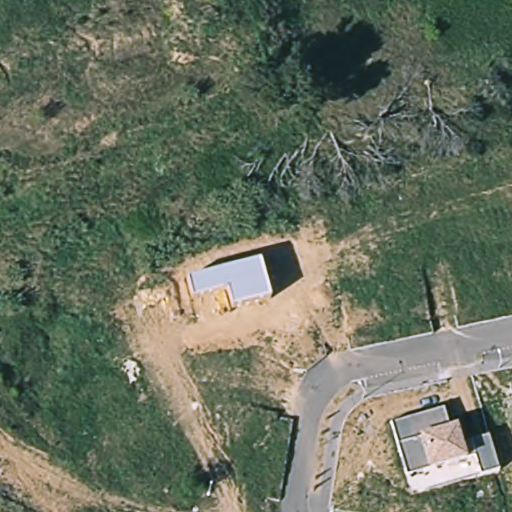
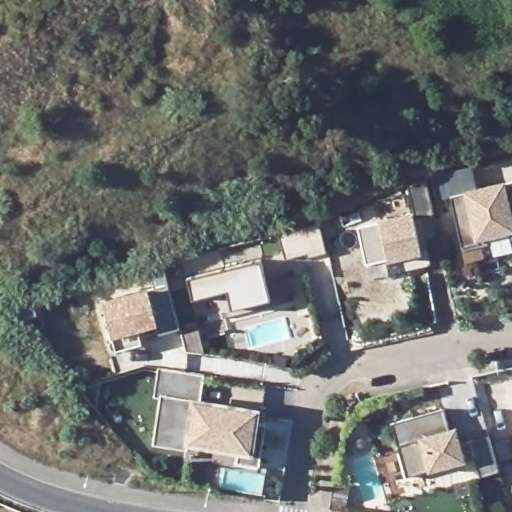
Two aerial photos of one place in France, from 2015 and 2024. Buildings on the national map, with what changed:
new [(510,176),(512,177),(512,244),(465,257),(448,192),(510,176)]
new [(435,215),(414,220),(409,185),(427,180),(435,215)]
new [(357,229),(377,225),(376,221),(411,213),(420,256),(386,263),(384,260),(364,264),(357,229)]
new [(319,224),(327,254),(308,259),(306,254),(285,259),(279,234),(319,224)]
unchanged [(261,259),(270,299),(232,309),(227,290),(192,300),(187,279),(261,259)]
new [(157,326),(139,332),(142,343),(117,351),(113,339),(101,302),(148,289),(155,288),(149,270),(163,266),(168,285),(180,328),(159,335),(157,326)]
new [(153,398),(159,367),(206,376),(201,400),(262,409),(259,424),(266,426),(259,466),(236,463),(236,454),(187,447),(186,451),(153,446),(161,399),(153,398)]
unchanged [(449,428),(457,425),(462,444),(489,437),(499,471),(480,476),(475,458),(408,476),(393,423),(443,409),(449,428)]

